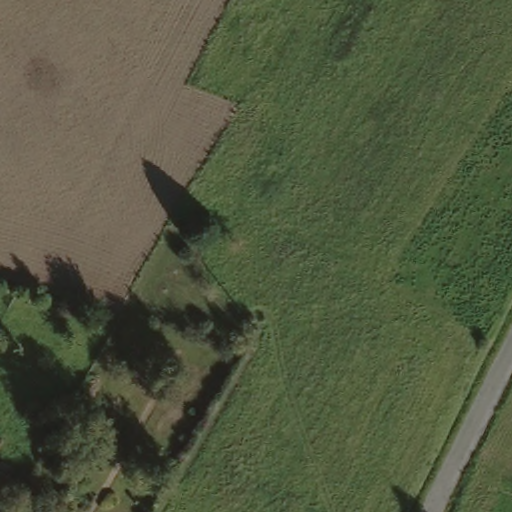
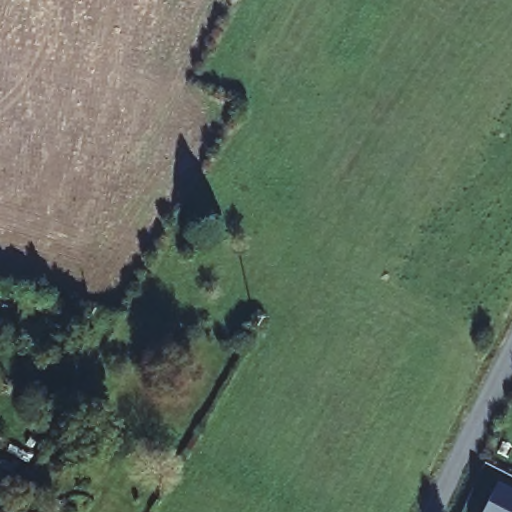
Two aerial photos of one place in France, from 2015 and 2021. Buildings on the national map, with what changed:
new [(512,492),(512,512),(483,512),(497,485),(512,492)]

